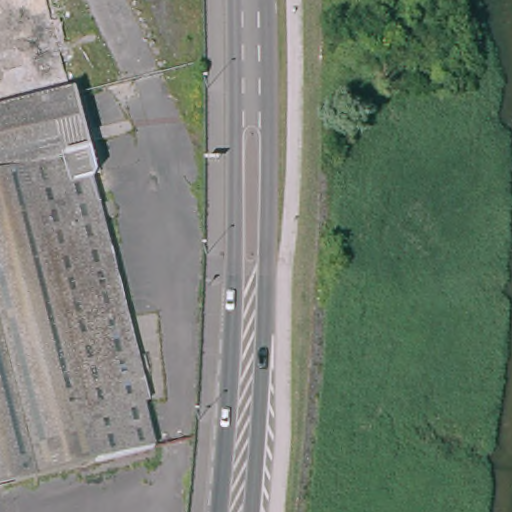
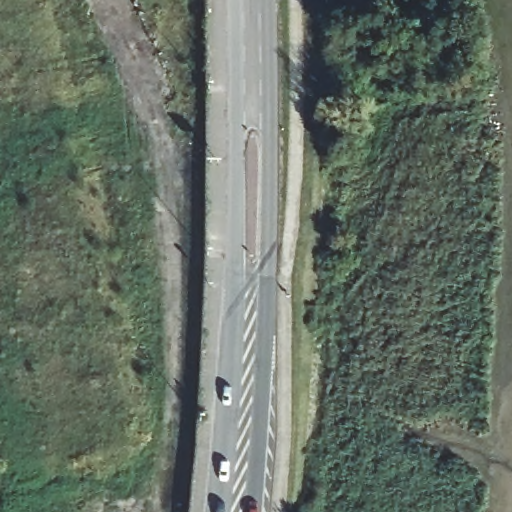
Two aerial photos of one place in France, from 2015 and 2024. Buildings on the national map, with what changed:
demolished [(43,0),(88,179),(143,397),(136,399),(147,444),(92,457),(58,466),(49,468),(0,481),(0,0),(43,0)]

